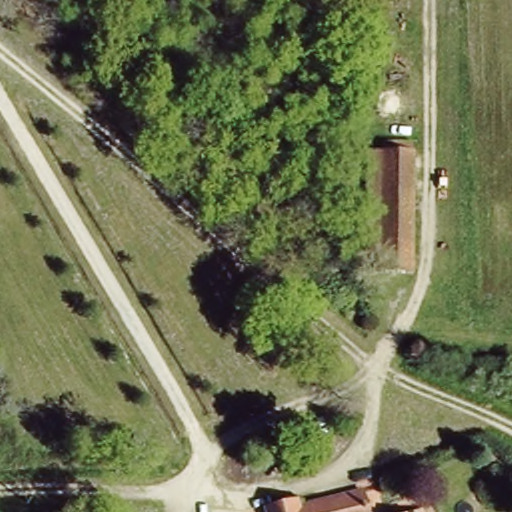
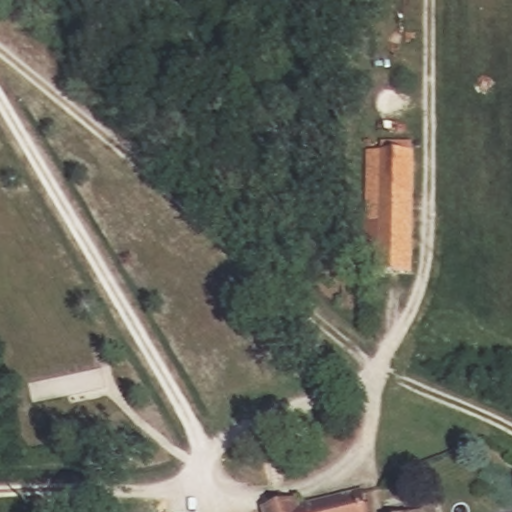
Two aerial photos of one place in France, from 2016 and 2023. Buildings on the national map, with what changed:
unchanged [(365,270),(369,145),(384,147),(384,134),(417,136),(417,272),(365,270)]
unchanged [(297,493),(299,502),(365,484),(370,512),(264,512),(262,505),(297,493)]
unchanged [(423,506),(425,512),(407,512),(423,506)]

